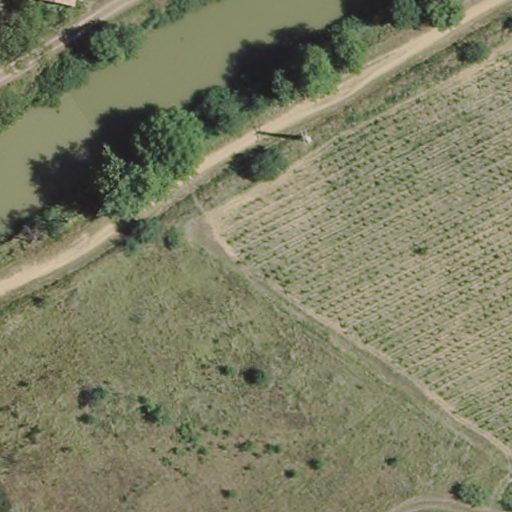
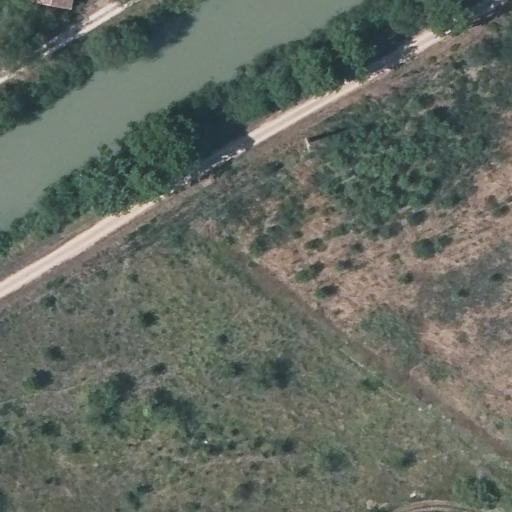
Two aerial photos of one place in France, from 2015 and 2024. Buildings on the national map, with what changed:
unchanged [(38,0),(68,0),(67,6),(38,0)]

